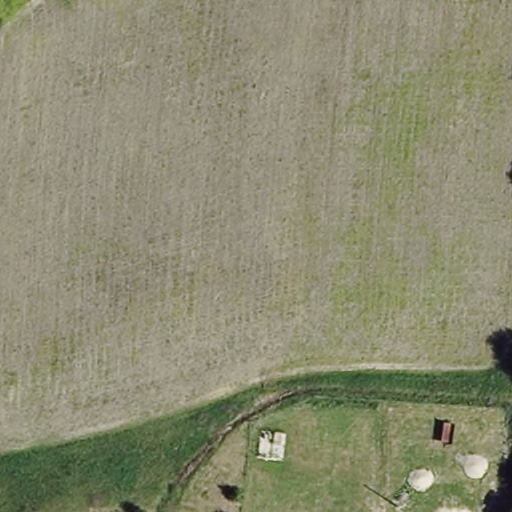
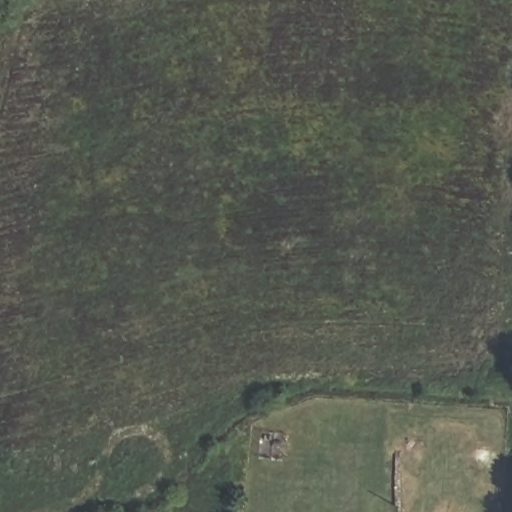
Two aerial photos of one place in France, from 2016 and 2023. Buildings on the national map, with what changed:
[]

